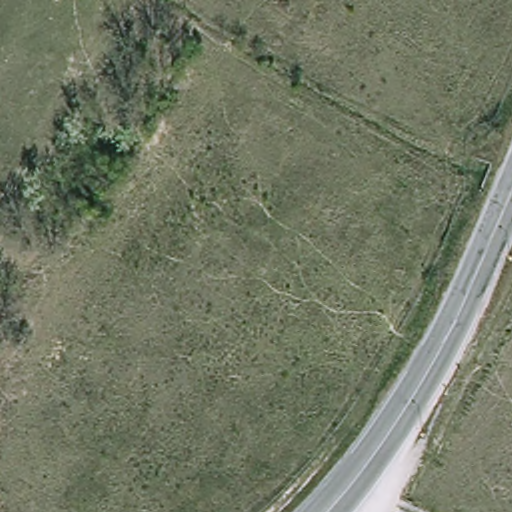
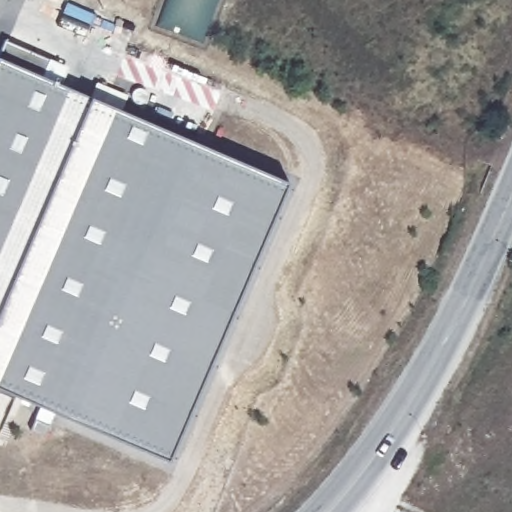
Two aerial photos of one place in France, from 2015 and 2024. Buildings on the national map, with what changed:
new [(167,461),(0,389),(0,60),(287,182),(167,461)]

